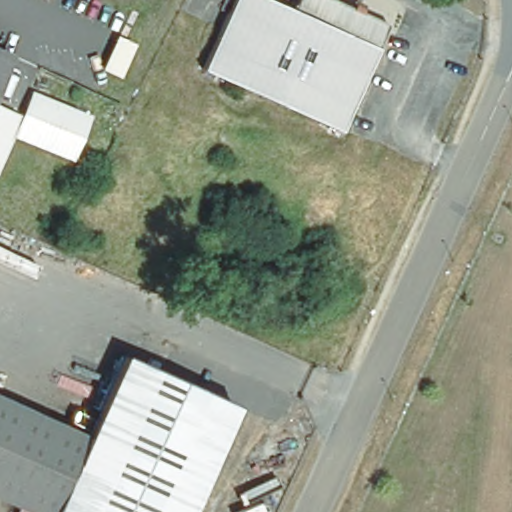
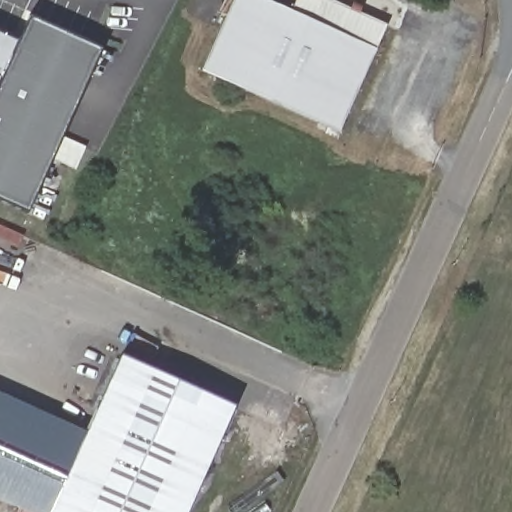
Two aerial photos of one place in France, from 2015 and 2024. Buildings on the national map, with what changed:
unchanged [(291,5),(294,0),(348,0),(387,18),(376,43),(340,122),(206,61),(235,0),(281,0),(291,5)]
new [(100,47),(28,206),(0,194),(0,46),(18,54),(34,18),(100,47)]
demolished [(7,44),(0,61),(0,40),(7,44)]
unchanged [(118,365),(228,415),(184,512),(14,512),(0,505),(0,405),(83,442),(118,365)]

